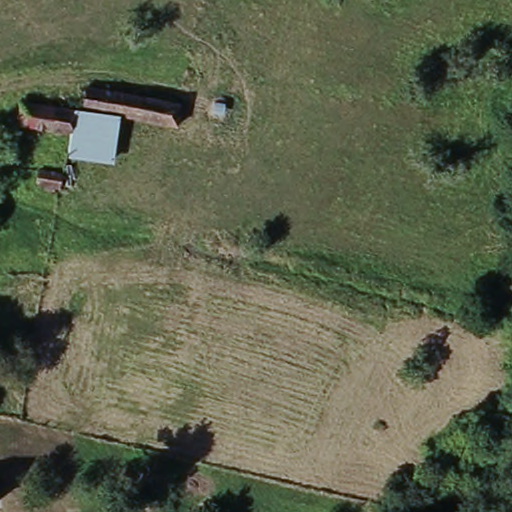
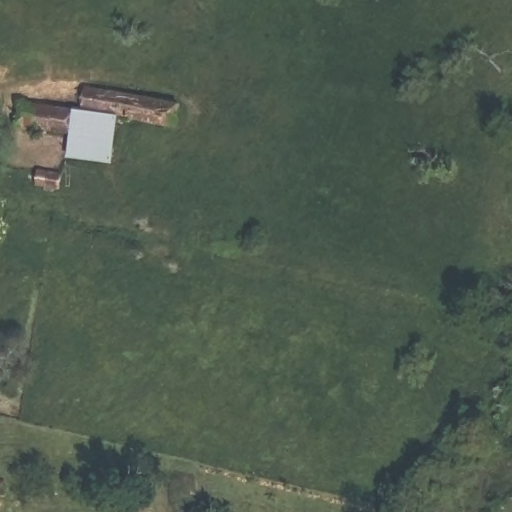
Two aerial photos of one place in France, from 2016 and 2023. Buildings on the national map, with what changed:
unchanged [(180,101),(178,125),(121,115),(115,162),(69,158),(68,132),(25,126),(25,104),(84,107),(88,87),(180,101)]
unchanged [(41,200),(43,181),(69,185),(66,204),(41,200)]

